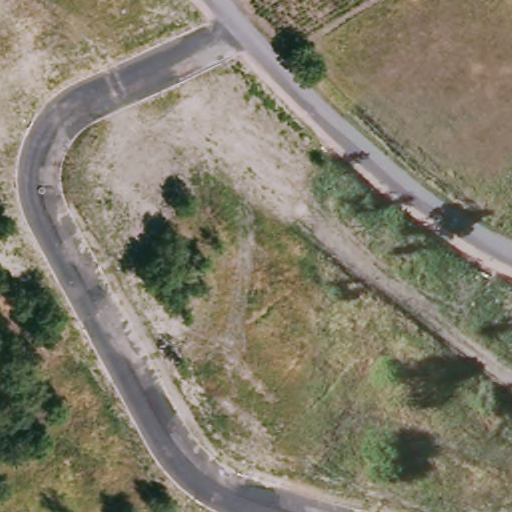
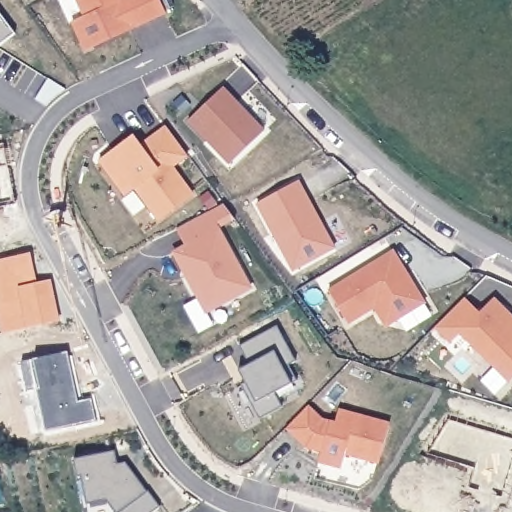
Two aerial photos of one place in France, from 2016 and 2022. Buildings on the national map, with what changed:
new [(149,21),(131,30),(93,47),(81,42),(72,22),(84,16),(77,0),(160,0),(166,13),(149,21)]
new [(0,47),(0,13),(16,35),(0,47)]
new [(223,89),(264,132),(230,166),(188,122),(223,89)]
new [(133,137),(143,151),(153,144),(150,140),(167,127),(187,155),(171,166),(192,195),(158,219),(123,172),(113,179),(100,161),(133,137)]
new [(293,276),(254,202),(299,182),(336,252),(293,276)]
new [(175,252),(186,247),(177,229),(209,212),(251,288),(207,312),(193,287),(184,270),(175,252)]
new [(407,275),(411,282),(424,304),(393,323),(381,321),(374,309),(348,325),(328,292),(393,252),(407,275)]
new [(463,298),(478,313),(493,298),(512,317),(512,379),(510,381),(460,332),(451,342),(435,327),(463,298)]
new [(238,371),(243,368),(248,365),(238,347),(276,326),(296,361),(289,365),(298,381),(275,393),(283,407),(259,420),(251,405),(241,386),(244,383),(238,371)]
new [(310,403),(324,417),(337,421),(341,408),(392,423),(379,463),(346,452),(342,467),(319,460),(323,449),(309,445),(289,426),(310,403)]
new [(80,481),(75,462),(116,452),(120,468),(126,467),(133,477),(136,474),(150,492),(151,491),(163,507),(157,512),(89,512),(80,481)]

